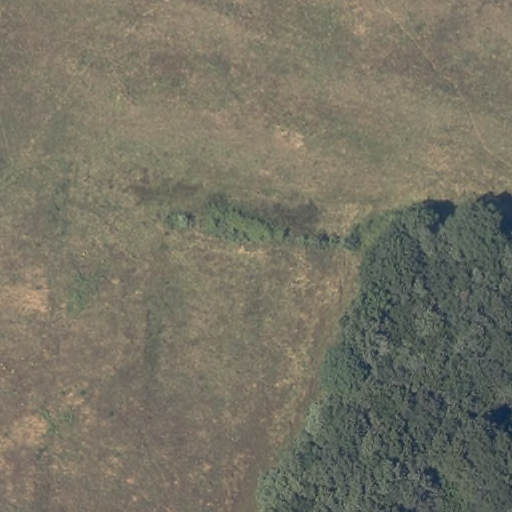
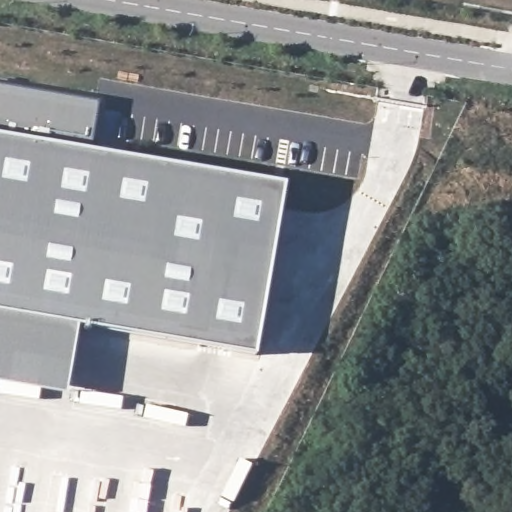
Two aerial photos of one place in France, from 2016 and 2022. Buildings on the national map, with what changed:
new [(0,380),(0,83),(100,101),(89,150),(283,185),(252,354),(74,324),(64,392),(0,380)]

